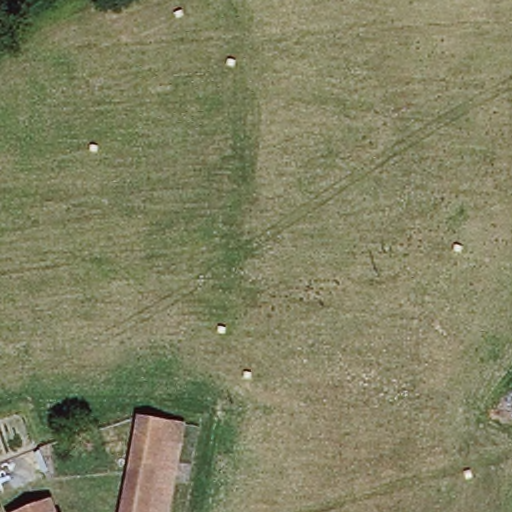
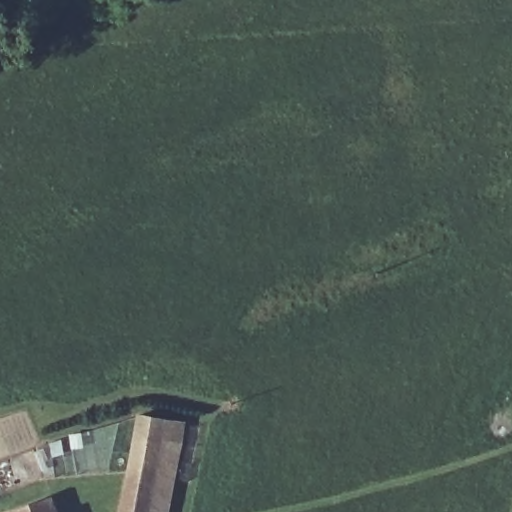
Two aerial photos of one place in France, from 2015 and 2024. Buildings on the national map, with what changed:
unchanged [(118,512),(135,416),(157,420),(142,512),(118,512)]
unchanged [(160,512),(142,512),(157,420),(174,423),(160,512)]
unchanged [(55,512),(18,512),(49,498),(55,512)]

